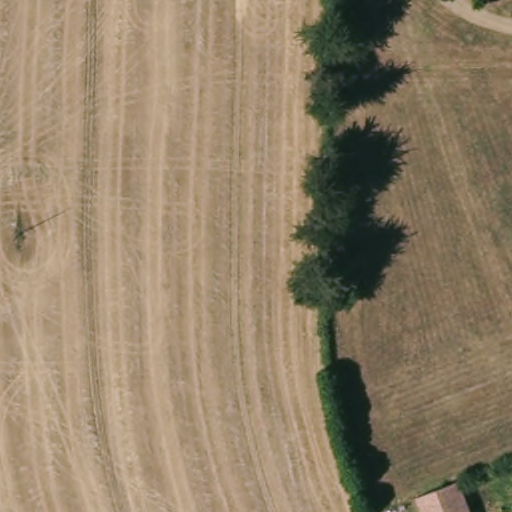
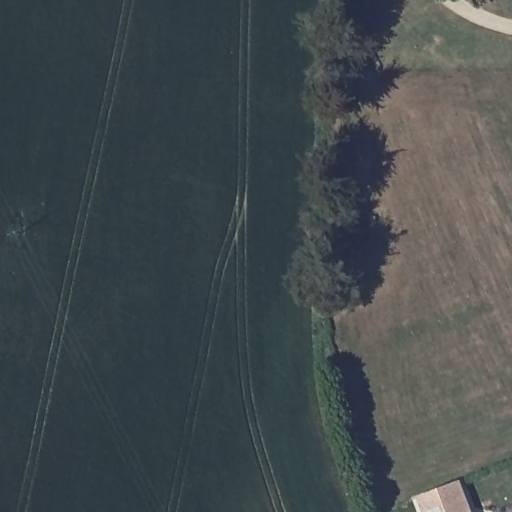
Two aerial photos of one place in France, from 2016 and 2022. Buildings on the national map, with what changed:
unchanged [(461,481),(472,512),(424,512),(419,497),(461,481)]

